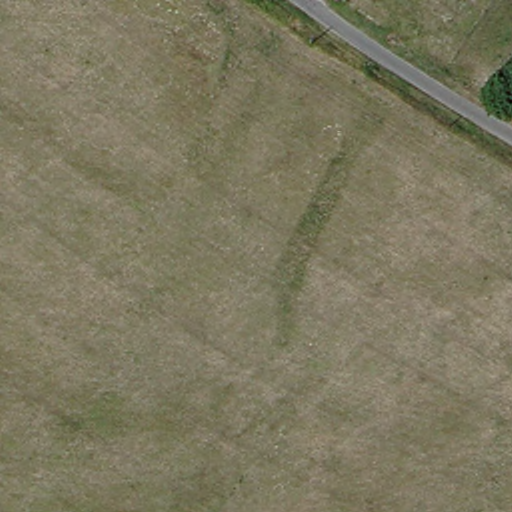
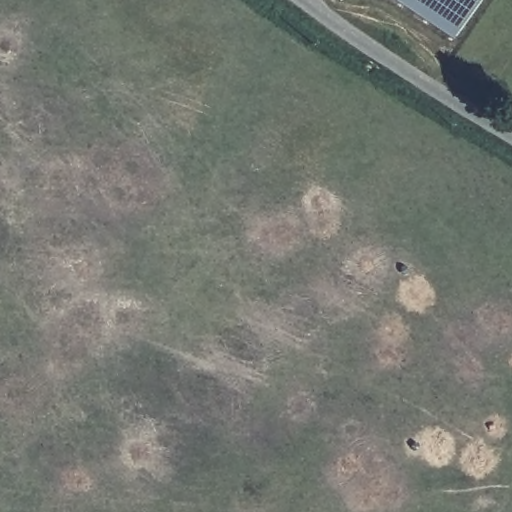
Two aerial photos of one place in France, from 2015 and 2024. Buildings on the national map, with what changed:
new [(456,42),(394,0),(485,0),(456,42)]

